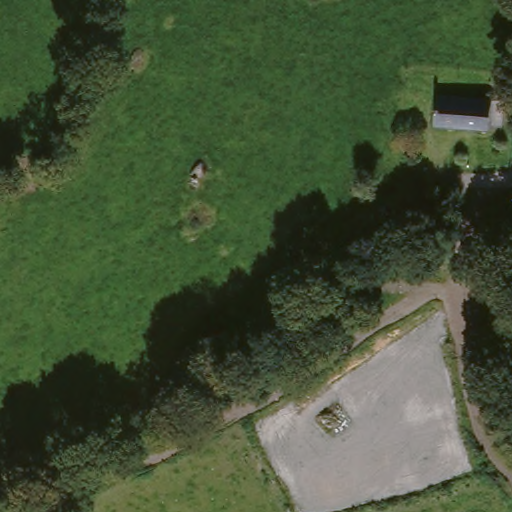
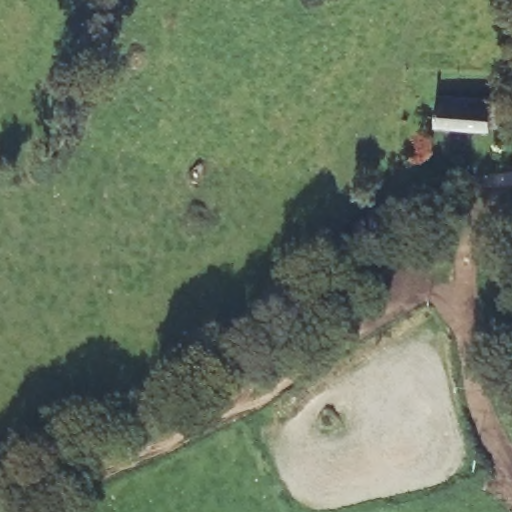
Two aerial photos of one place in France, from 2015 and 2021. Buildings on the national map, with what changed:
unchanged [(503,101),(501,128),(492,127),(492,131),(438,127),(439,97),(503,101)]

